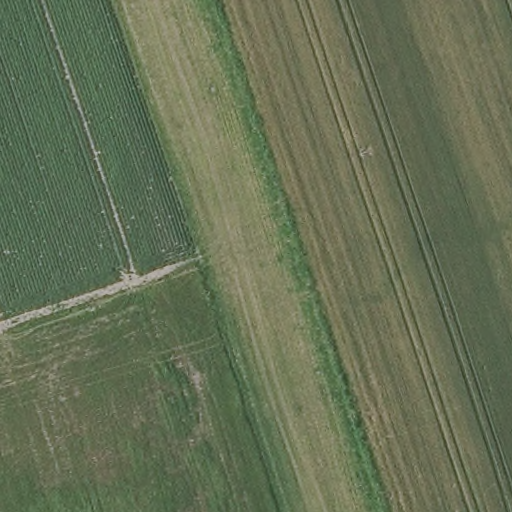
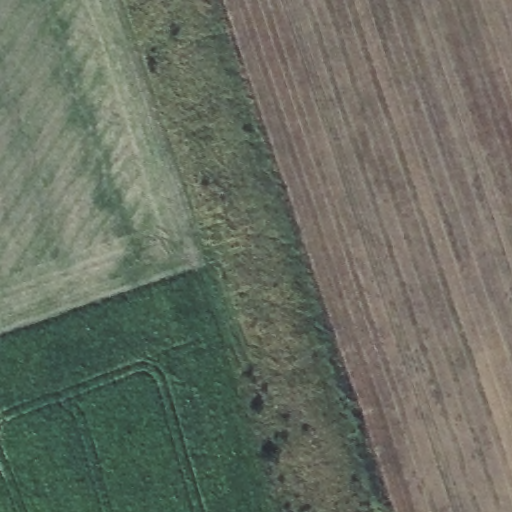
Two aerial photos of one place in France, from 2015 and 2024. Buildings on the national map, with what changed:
[]

